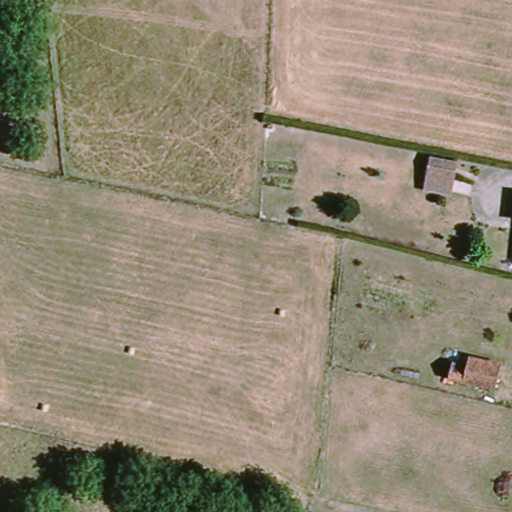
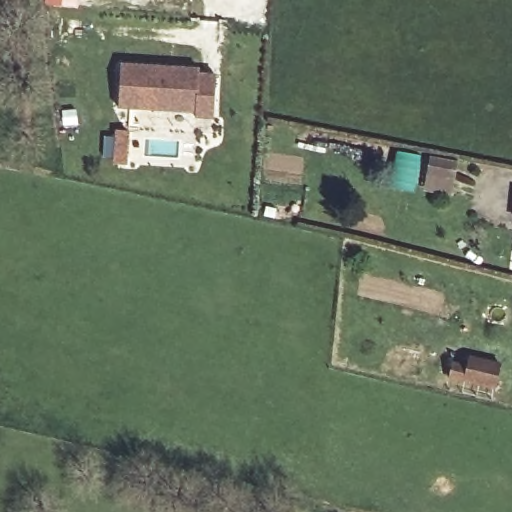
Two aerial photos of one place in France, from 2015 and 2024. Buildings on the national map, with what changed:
new [(42,9),(43,0),(76,0),(75,10),(42,9)]
new [(199,69),(199,74),(215,75),(212,120),(195,120),(195,112),(117,109),(120,64),(199,69)]
unchanged [(452,384),(458,360),(502,372),(496,395),(452,384)]

